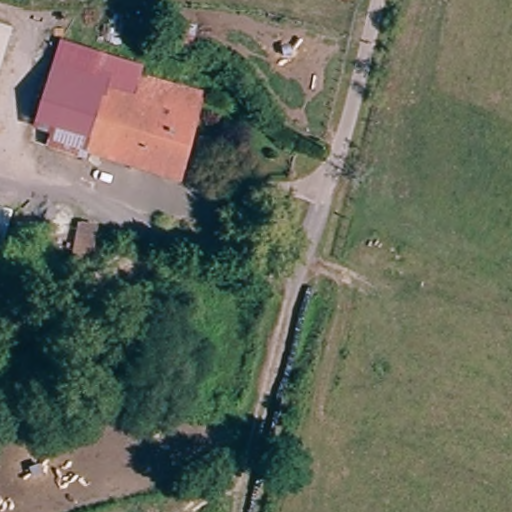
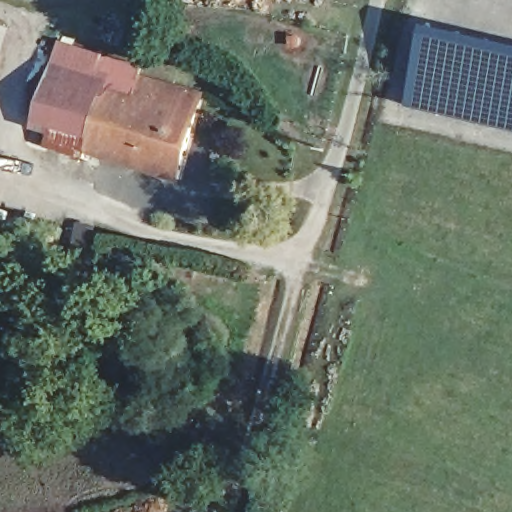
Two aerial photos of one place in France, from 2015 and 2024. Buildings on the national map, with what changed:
unchanged [(10,79),(0,116),(0,21),(25,29),(10,79)]
new [(427,23),(512,42),(512,133),(488,127),(407,106),(427,23)]
unchanged [(59,96),(66,70),(74,44),(106,54),(144,65),(141,82),(207,100),(180,181),(87,154),(83,159),(62,152),(43,146),(51,120),(59,96)]
unchanged [(0,226),(0,209),(4,210),(0,226)]

